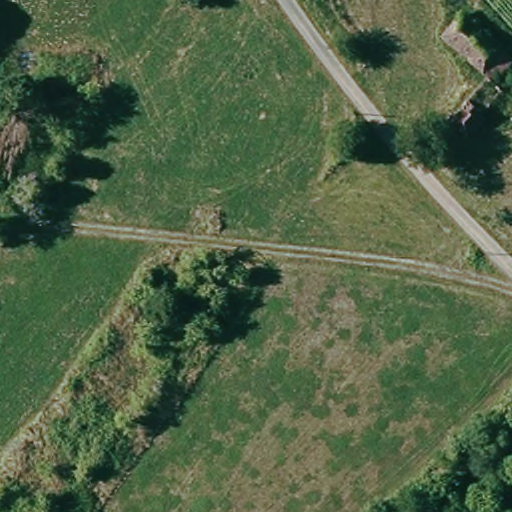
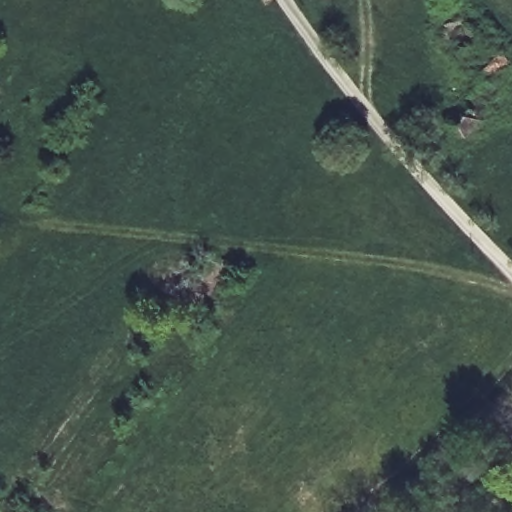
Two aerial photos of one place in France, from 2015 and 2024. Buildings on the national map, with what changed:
unchanged [(450,15),(459,24),(465,20),(509,63),(490,84),(502,96),(480,119),(483,122),(464,140),(446,122),(484,84),(435,36),(432,32),(450,15)]

